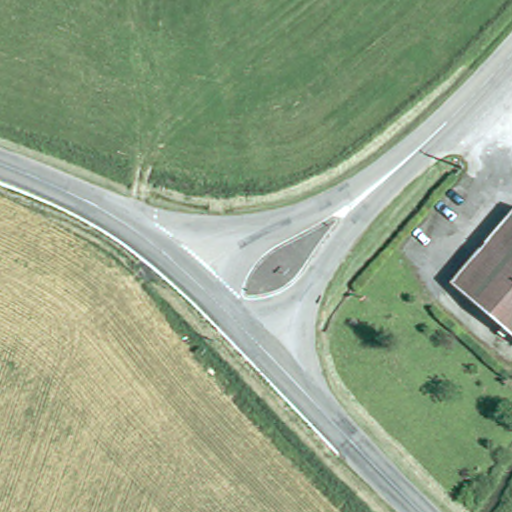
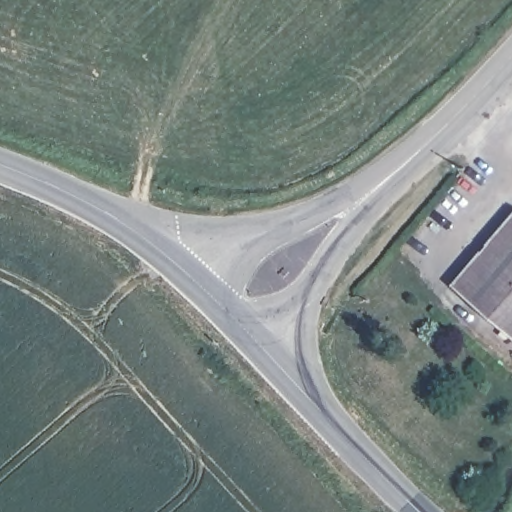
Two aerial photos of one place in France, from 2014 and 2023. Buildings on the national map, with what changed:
unchanged [(512,221),(512,331),(459,288),(512,221)]

